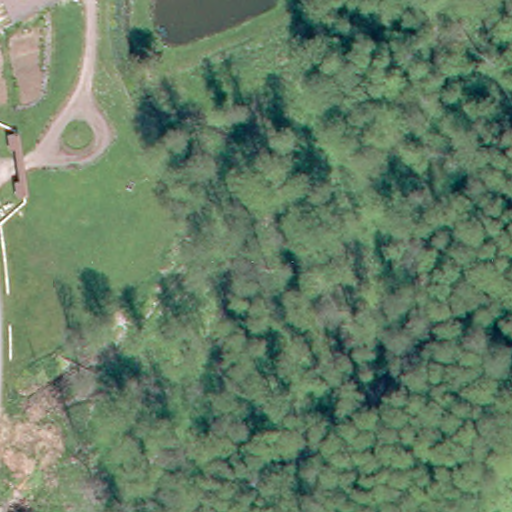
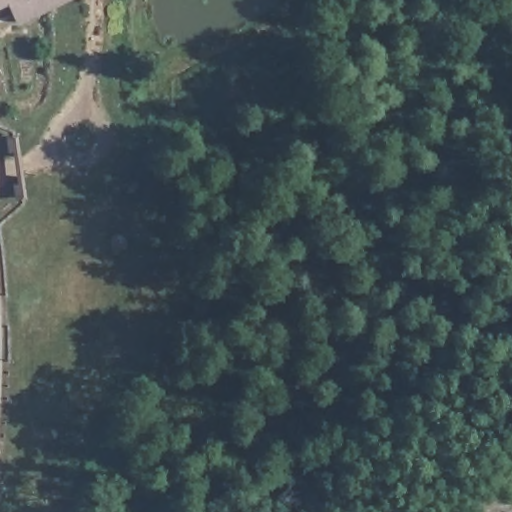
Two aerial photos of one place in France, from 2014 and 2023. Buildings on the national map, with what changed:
unchanged [(14,2),(0,9),(0,0),(77,0),(25,25),(14,2)]

